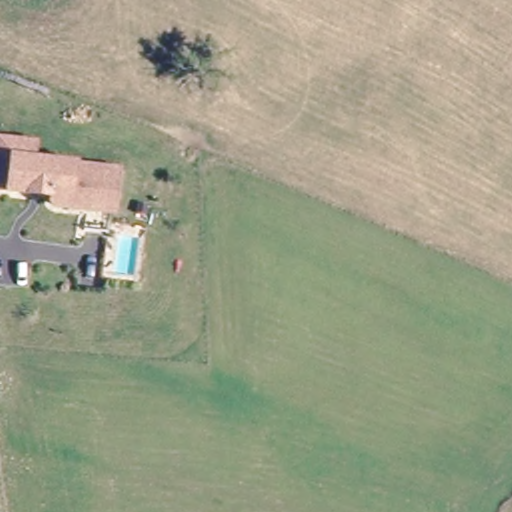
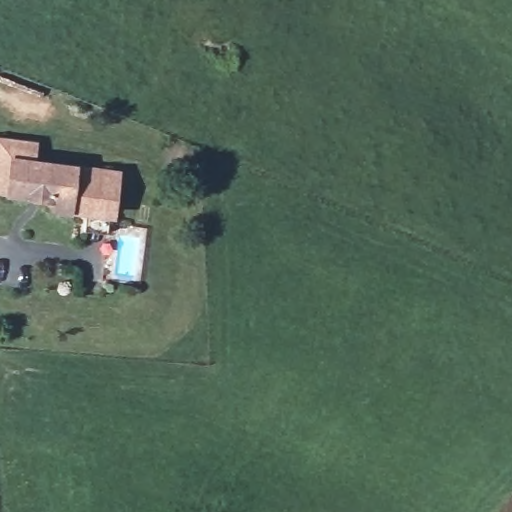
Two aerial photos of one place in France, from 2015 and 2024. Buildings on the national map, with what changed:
unchanged [(109,233),(85,229),(88,209),(60,205),(52,202),(50,189),(34,186),(31,192),(0,186),(0,139),(32,144),(31,160),(100,168),(116,173),(109,233)]

